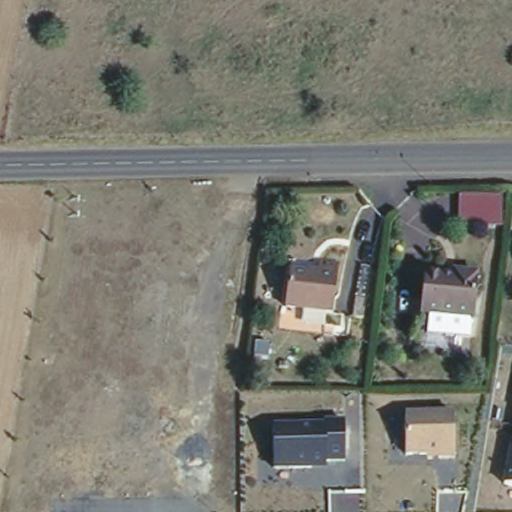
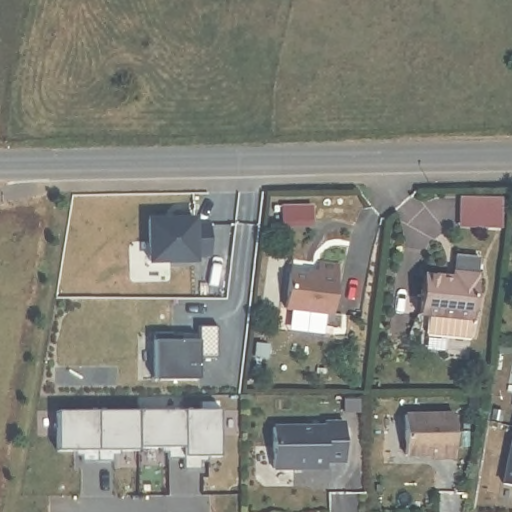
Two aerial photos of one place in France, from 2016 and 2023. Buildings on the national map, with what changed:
new [(459,194),(503,193),(503,223),(459,225),(459,194)]
new [(192,214),(192,219),(209,219),(209,251),(193,251),(193,256),(177,257),(177,258),(164,258),(164,257),(148,257),(147,215),(192,214)]
unchanged [(316,266),(317,261),(337,264),(331,311),(285,306),(288,263),(316,266)]
unchanged [(451,275),(452,269),(478,272),(474,316),(420,309),(425,272),(451,275)]
new [(169,332),(179,332),(179,337),(195,337),(195,323),(215,322),(216,355),(197,355),(197,377),(152,377),(152,330),(169,330),(169,332)]
new [(138,441),(137,404),(184,403),(184,452),(167,452),(167,446),(161,446),(161,441),(138,441)]
new [(184,452),(184,403),(219,403),(220,450),(201,450),(201,463),(184,463),(184,452)]
new [(57,445),(57,405),(97,404),(98,455),(82,456),(82,450),(75,450),(75,445),(57,445)]
new [(113,449),(114,455),(98,455),(97,404),(137,404),(138,441),(138,444),(120,444),(120,449),(113,449)]
unchanged [(456,454),(426,456),(426,452),(406,452),(405,411),(454,408),(456,454)]
unchanged [(347,463),(328,463),(327,468),(274,470),(273,423),(327,422),(327,419),(346,419),(347,463)]
unchanged [(502,484),(512,438),(512,486),(502,484)]

